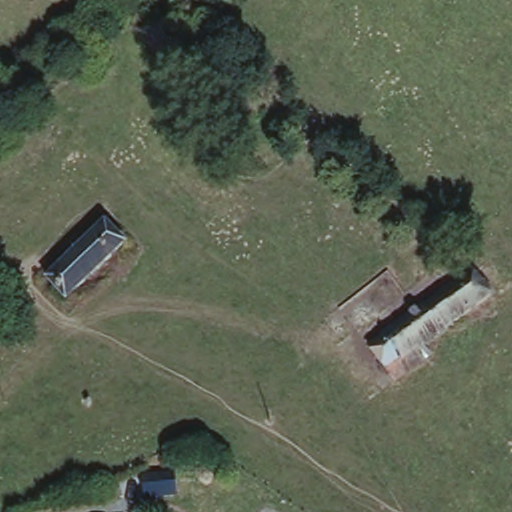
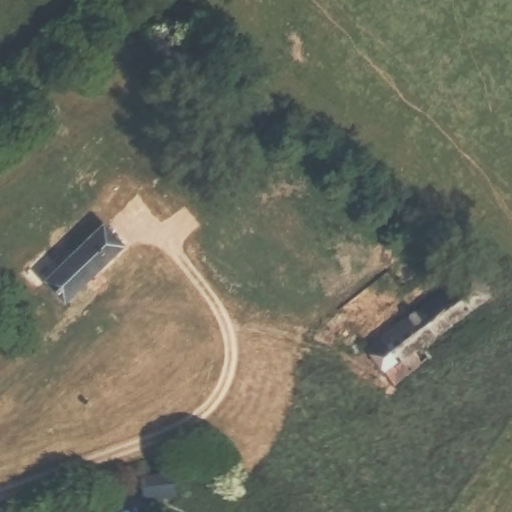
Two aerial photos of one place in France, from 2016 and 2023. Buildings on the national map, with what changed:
unchanged [(179,85),(166,72),(135,42),(154,26),(185,56),(198,69),(179,85)]
unchanged [(64,305),(39,278),(101,215),(128,243),(64,305)]
unchanged [(498,295),(429,346),(435,355),(392,385),(358,347),(470,266),(498,295)]

